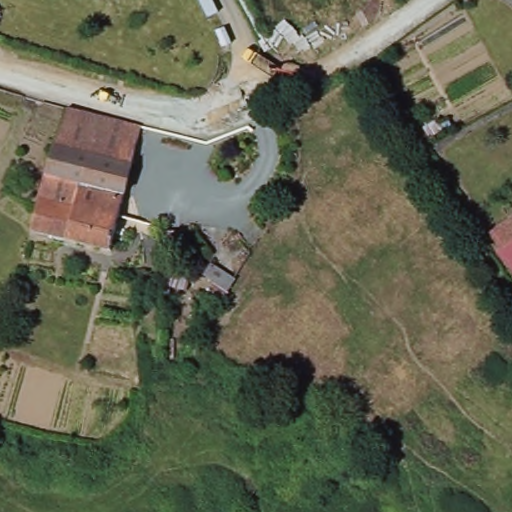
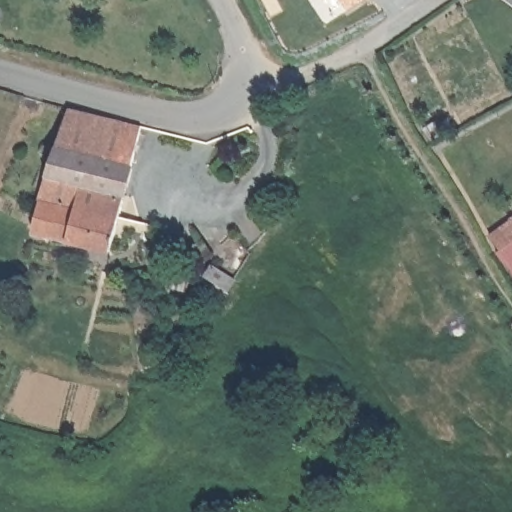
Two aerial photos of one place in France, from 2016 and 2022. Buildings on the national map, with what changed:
unchanged [(44,200),(41,199),(53,169),(72,109),(146,133),(118,227),(126,231),(121,246),(114,244),(111,255),(33,229),(41,209),(44,200)]
unchanged [(440,123),(448,136),(435,144),(427,130),(440,123)]
unchanged [(173,250),(157,245),(162,221),(175,222),(178,232),(173,250)]
unchanged [(497,255),(500,252),(491,239),(512,224),(512,276),(507,270),(499,258),(497,255)]
unchanged [(234,293),(213,277),(221,266),(242,282),(234,293)]

